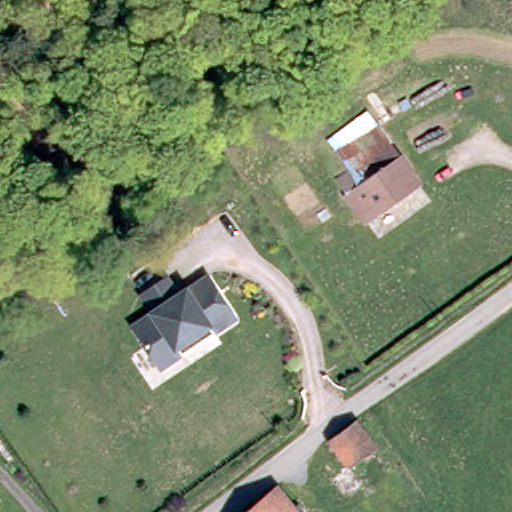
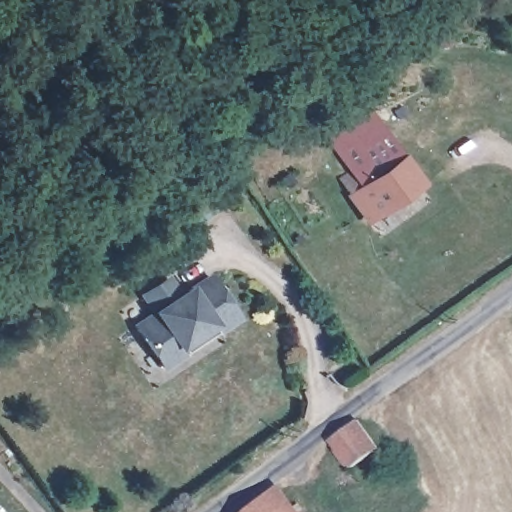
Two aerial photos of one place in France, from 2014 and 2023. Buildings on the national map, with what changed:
unchanged [(359,186),(346,168),(381,141),(394,159),(359,186)]
unchanged [(425,200),(379,235),(348,194),(359,186),(394,159),(425,200)]
unchanged [(150,364),(122,322),(142,309),(130,292),(154,275),(166,292),(168,291),(175,286),(196,272),(224,314),(203,328),(171,350),(150,364)]
unchanged [(379,448),(351,468),(331,441),(356,420),(379,448)]
unchanged [(302,512),(247,512),(279,484),(302,512)]

